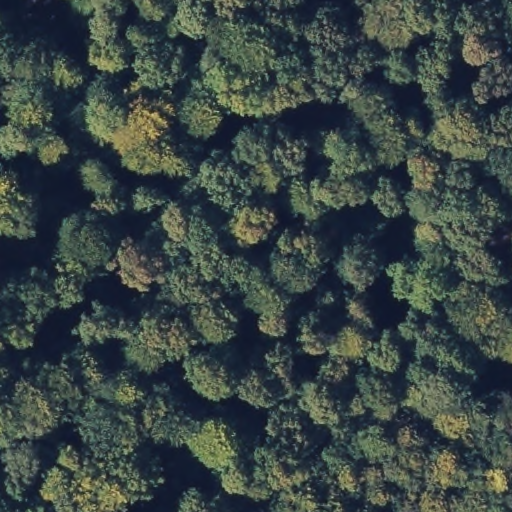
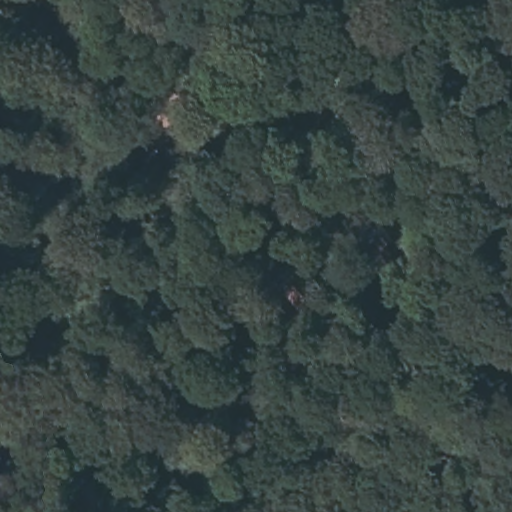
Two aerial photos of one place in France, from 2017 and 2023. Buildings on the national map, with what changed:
unchanged [(84,448),(49,468),(24,428),(64,413),(84,448)]

